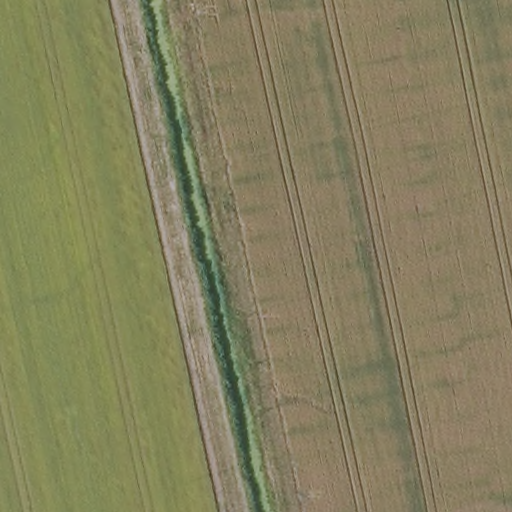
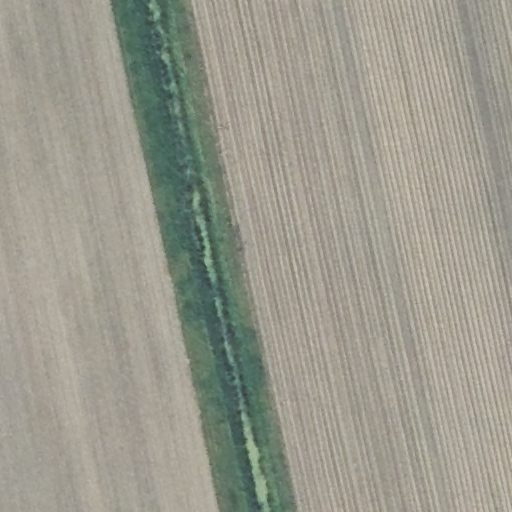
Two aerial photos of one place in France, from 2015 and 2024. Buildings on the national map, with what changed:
[]

